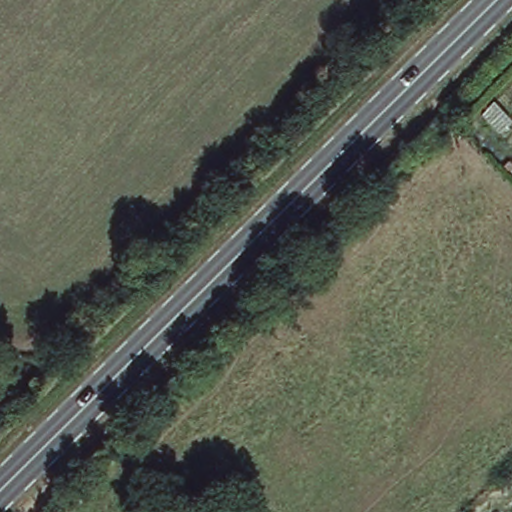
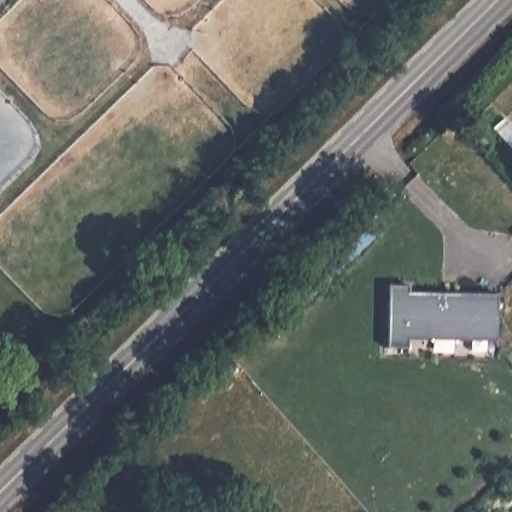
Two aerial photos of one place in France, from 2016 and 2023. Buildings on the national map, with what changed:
new [(401,339),(401,348),(380,348),(380,286),(401,285),(401,292),(489,291),(490,338),(401,339)]

